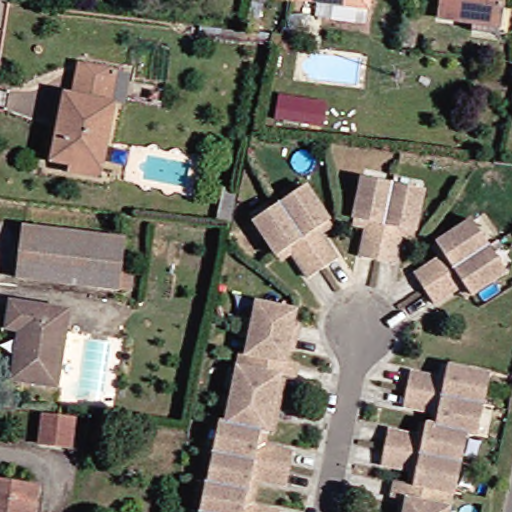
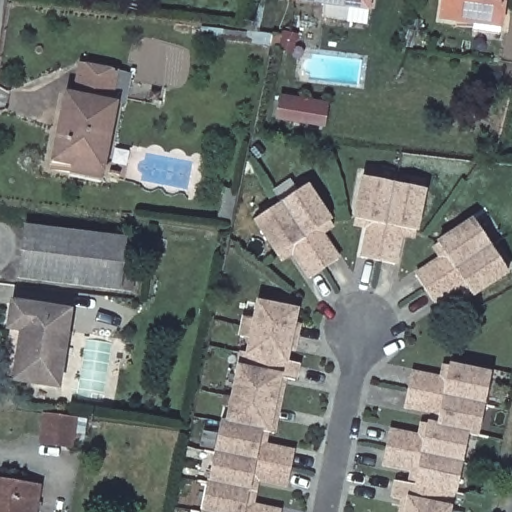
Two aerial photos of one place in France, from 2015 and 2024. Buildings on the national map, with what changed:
unchanged [(327,10),(328,0),(374,0),(371,16),(327,10)]
unchanged [(441,2),(442,0),(504,0),(501,27),(439,18),(440,14),(441,2)]
unchanged [(426,37),(424,50),(401,47),(405,32),(413,34),(424,37),(426,37)]
unchanged [(75,163),(55,160),(69,89),(78,91),(84,60),(136,70),(130,99),(121,98),(106,176),(74,170),(75,163)]
unchanged [(282,98),(327,105),(324,130),(278,122),(282,98)]
unchanged [(367,242),(372,219),(357,216),(366,177),(395,184),(382,245),(367,242)]
unchanged [(425,190),(417,228),(402,225),(396,249),(382,245),(395,184),(425,190)]
unchanged [(311,192),(334,225),(321,232),(335,253),(320,262),(286,207),(311,192)]
unchanged [(309,269),(295,249),(282,257),(261,223),(286,207),(320,262),(309,269)]
unchanged [(491,242),(510,267),(481,286),(476,289),(467,277),(447,290),(431,267),(450,252),(441,241),(475,220),(491,242)]
unchanged [(120,289),(22,277),(24,265),(25,254),(26,247),(29,228),(54,231),(80,234),(86,235),(91,236),(96,236),(102,237),(113,238),(124,239),(131,240),(130,242),(129,254),(128,260),(128,261),(141,263),(136,291),(125,290),(120,289)]
unchanged [(62,369),(59,390),(14,382),(14,378),(15,373),(20,346),(21,332),(20,332),(9,331),(7,331),(10,319),(10,313),(12,305),(31,307),(36,308),(48,310),(54,311),(70,313),(69,324),(66,341),(62,369)]
unchanged [(299,317),(288,367),(301,370),(298,386),(282,383),(267,451),(291,457),(285,487),(260,481),(256,496),(251,495),(247,511),(254,512),(205,512),(210,487),(215,487),(229,427),(233,428),(236,413),(226,412),(228,402),(235,403),(244,358),(250,360),(254,345),(245,343),(249,322),(259,325),(262,309),(299,317)]
unchanged [(469,372),(498,378),(485,436),(472,433),(458,495),(453,493),(450,512),(409,512),(411,502),(395,498),(398,482),(418,487),(422,471),(397,465),(404,435),(428,440),(431,425),(443,427),(446,412),(421,407),(428,377),(452,383),(455,368),(469,372)]
unchanged [(76,418),(71,450),(37,445),(41,414),(62,417),(68,417),(76,418)]
unchanged [(34,512),(0,512),(0,478),(4,479),(7,479),(12,480),(19,481),(41,485),(49,486),(49,488),(47,493),(36,492),(34,512)]

